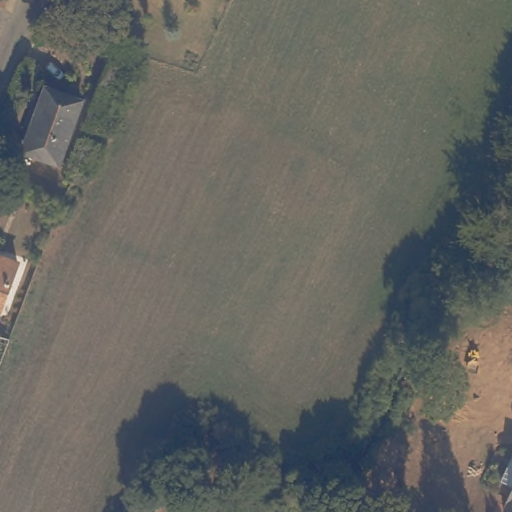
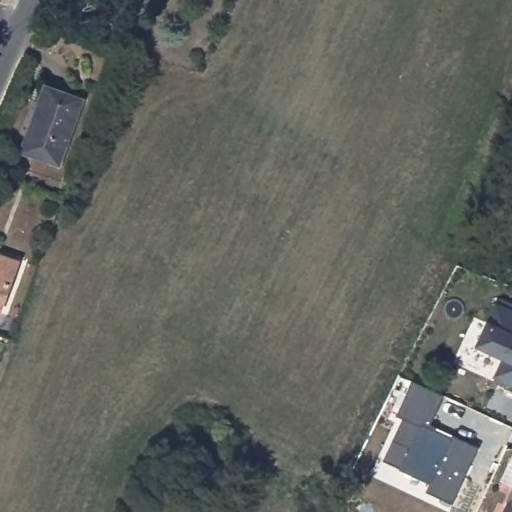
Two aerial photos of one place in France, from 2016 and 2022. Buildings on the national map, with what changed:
unchanged [(58,164),(26,153),(39,121),(33,119),(46,88),(82,101),(58,164)]
unchanged [(0,259),(13,263),(0,298),(0,259)]
new [(496,377),(504,360),(477,347),(497,305),(512,312),(512,384),(496,377)]
new [(414,382),(444,396),(429,424),(454,436),(476,446),(449,503),(425,493),(429,486),(400,471),(383,462),(404,418),(396,415),(414,382)]
unchanged [(504,482),(512,464),(512,486),(504,482)]
unchanged [(510,512),(508,511),(512,502),(512,512),(510,512)]

